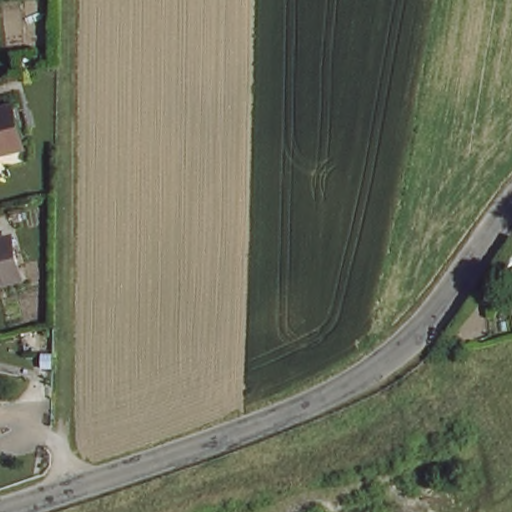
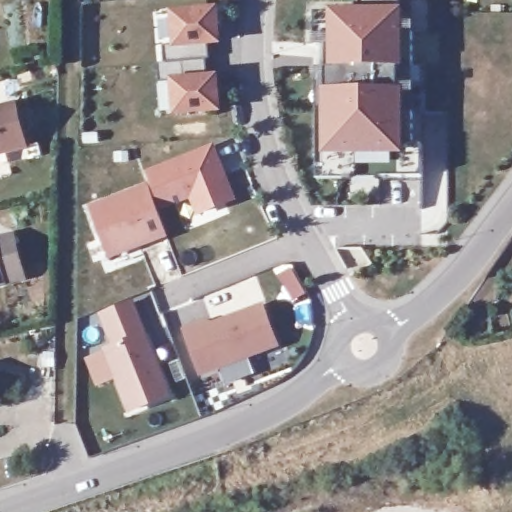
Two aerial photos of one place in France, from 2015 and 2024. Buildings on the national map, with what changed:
new [(311,10),(353,10),(354,1),(407,1),(411,145),(421,145),(422,180),(311,181),(311,10)]
new [(170,84),(156,85),(156,67),(163,67),(161,44),(172,44),(170,13),(211,10),(214,45),(203,46),(207,80),(213,80),(216,110),(174,116),(170,84)]
unchanged [(19,102),(29,146),(0,153),(0,106),(19,102)]
new [(145,184),(140,172),(213,144),(234,205),(197,220),(191,207),(158,222),(163,238),(108,261),(87,208),(145,184)]
unchanged [(7,235),(17,275),(0,279),(0,236),(7,235)]
new [(100,315),(134,300),(146,333),(173,400),(128,418),(102,350),(109,347),(100,315)]
new [(207,318),(213,322),(263,303),(280,349),(197,379),(179,329),(207,318)]

